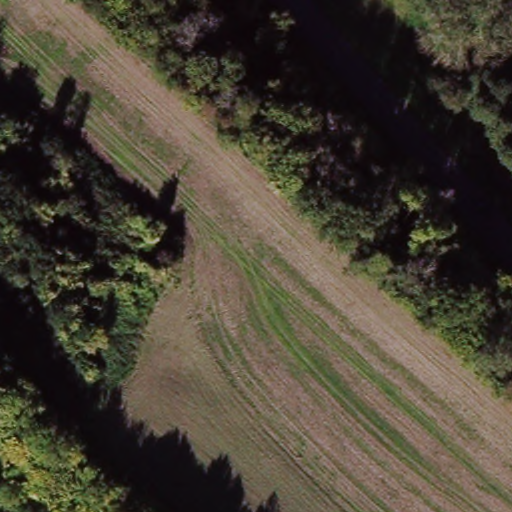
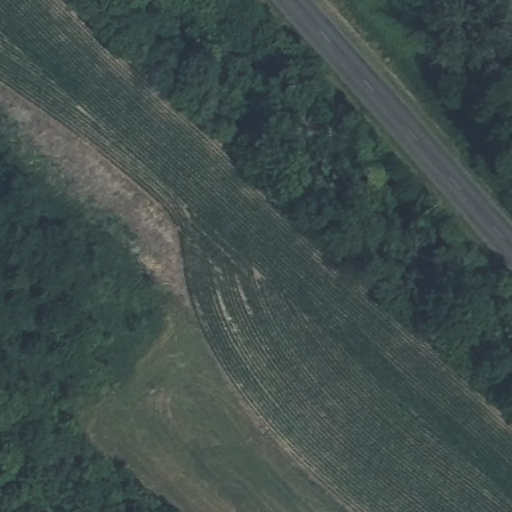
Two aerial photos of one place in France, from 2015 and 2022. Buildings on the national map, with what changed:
[]

